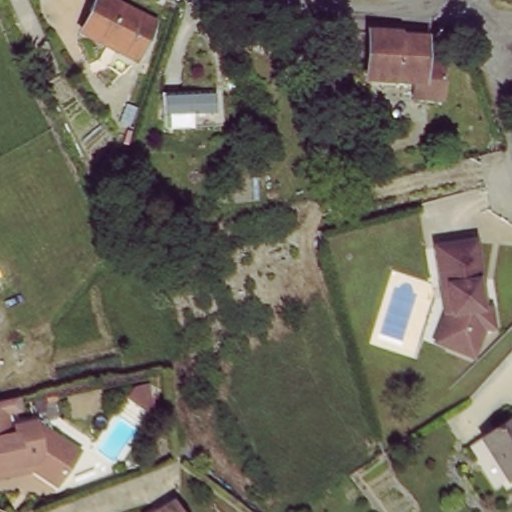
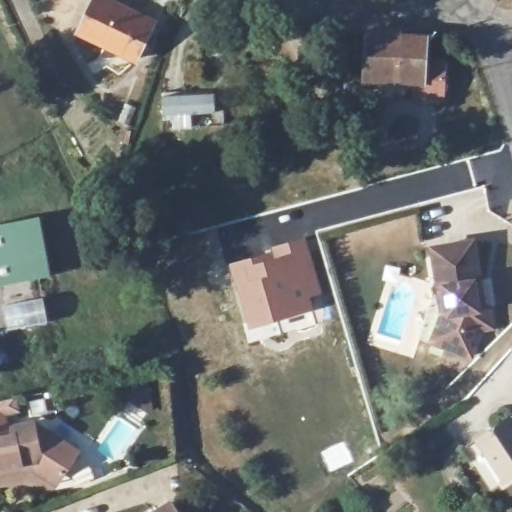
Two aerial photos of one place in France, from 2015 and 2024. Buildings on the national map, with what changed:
unchanged [(138,63),(79,34),(95,0),(106,0),(156,25),(138,63)]
unchanged [(368,28),(430,29),(430,58),(448,60),(449,98),(414,100),(412,81),(366,81),(368,28)]
unchanged [(216,113),(192,115),(192,128),(168,130),(165,97),(215,94),(216,113)]
new [(39,217),(51,276),(0,285),(0,224),(39,217)]
new [(271,249),(270,246),(306,235),(323,294),(311,298),(316,326),(279,335),(276,323),(249,332),(227,262),(271,249)]
unchanged [(442,242),(482,240),(483,309),(488,309),(490,329),(479,330),(464,356),(442,342),(426,333),(442,306),(441,291),(443,279),(442,242)]
unchanged [(133,399),(130,404),(110,389),(117,378),(128,376),(133,399)]
unchanged [(36,470),(27,472),(0,478),(0,403),(16,399),(19,412),(5,415),(10,434),(18,432),(16,427),(36,422),(40,438),(53,434),(81,454),(65,477),(59,485),(36,470)]
unchanged [(473,444),(512,418),(512,477),(499,485),(473,444)]
unchanged [(172,504),(177,512),(159,512),(172,504)]

